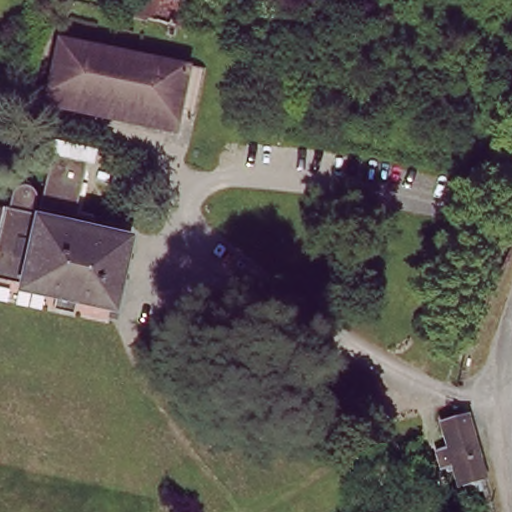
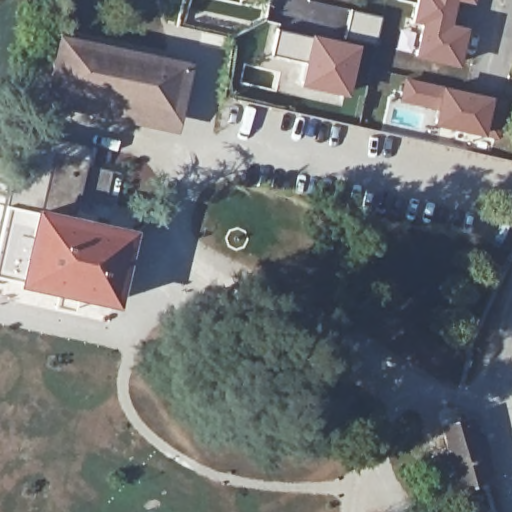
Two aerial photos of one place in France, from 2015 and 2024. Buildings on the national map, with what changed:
demolished [(132,0),(176,0),(184,1),(179,24),(129,14),(129,13),(132,0)]
new [(450,23),(468,26),(458,66),(412,55),(419,24),(409,21),(414,0),(455,0),(450,23)]
new [(473,2),(464,0),(473,0),(473,2)]
new [(342,38),(349,7),(382,14),(376,40),(355,36),(354,41),(360,42),(347,97),(296,87),(301,63),(309,32),(342,38)]
new [(275,25),(309,32),(301,63),(268,56),(275,25)]
unchanged [(50,85),(60,38),(184,65),(173,112),(50,85)]
unchanged [(207,70),(196,117),(173,112),(184,65),(207,70)]
new [(512,70),(512,77),(511,77),(512,70)]
new [(441,84),(492,97),(507,101),(498,138),(482,134),(431,123),(435,109),(398,99),(403,75),(441,84)]
unchanged [(50,85),(173,112),(170,131),(45,103),(50,85)]
unchanged [(53,305),(56,289),(0,277),(0,224),(5,204),(9,205),(12,189),(14,186),(16,184),(18,183),(21,182),(25,182),(29,183),(32,186),(36,194),(36,195),(33,210),(36,212),(38,210),(51,150),(87,160),(76,210),(97,216),(95,223),(128,232),(123,255),(131,257),(127,278),(118,276),(112,302),(78,294),(74,310),(53,305)]
unchanged [(463,480),(457,460),(450,461),(446,458),(442,447),(453,445),(447,425),(474,419),(490,474),(463,480)]

